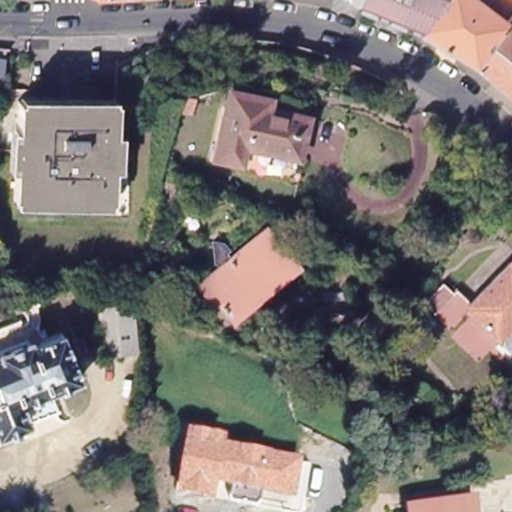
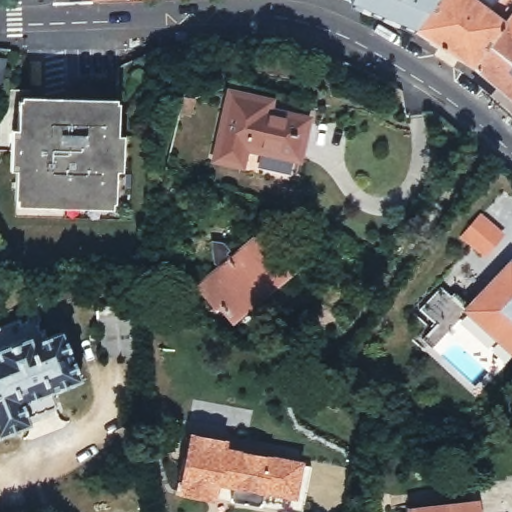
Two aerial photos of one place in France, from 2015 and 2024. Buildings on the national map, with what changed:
unchanged [(357,0),(441,0),(421,28),(357,0)]
unchanged [(479,64),(421,28),(441,0),(484,0),(512,20),(479,64)]
unchanged [(484,0),(512,0),(512,20),(484,0)]
unchanged [(479,64),(512,20),(512,91),(479,64)]
unchanged [(0,86),(0,59),(8,60),(6,86),(0,86)]
unchanged [(313,114),(304,155),(250,145),(245,166),(219,161),(234,88),(274,96),(272,105),(313,114)]
unchanged [(120,203),(21,201),(23,102),(124,105),(120,203)]
unchanged [(273,232),(279,234),(296,255),(304,264),(245,312),(239,304),(235,307),(232,302),(229,304),(212,284),(273,232)]
unchanged [(509,345),(474,315),(458,332),(432,309),(449,289),(461,299),(464,295),(480,309),(512,274),(512,342),(509,345)]
unchanged [(317,310),(311,291),(357,277),(363,296),(317,310)]
unchanged [(144,355),(107,358),(104,306),(139,304),(144,355)]
unchanged [(481,359),(455,336),(474,317),(498,337),(481,359)]
unchanged [(9,347),(38,336),(40,341),(73,328),(93,378),(60,391),(65,402),(36,412),(39,421),(8,433),(0,415),(0,355),(10,352),(9,347)]
unchanged [(207,494),(203,511),(177,506),(188,451),(212,456),(214,448),(267,458),(262,486),(235,481),(233,498),(207,494)]
unchanged [(317,467),(314,495),(279,485),(285,459),(317,467)]
unchanged [(481,508),(481,512),(447,512),(481,508)]

